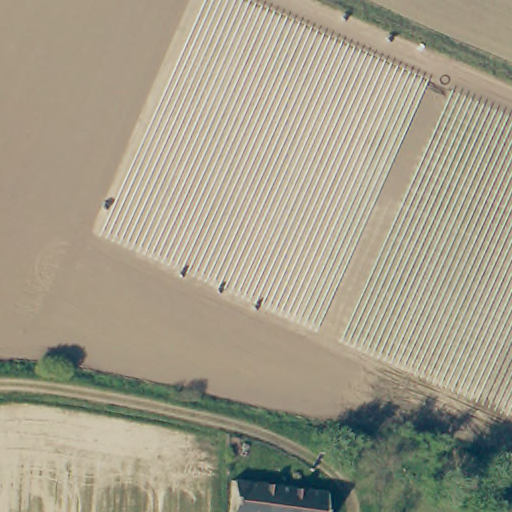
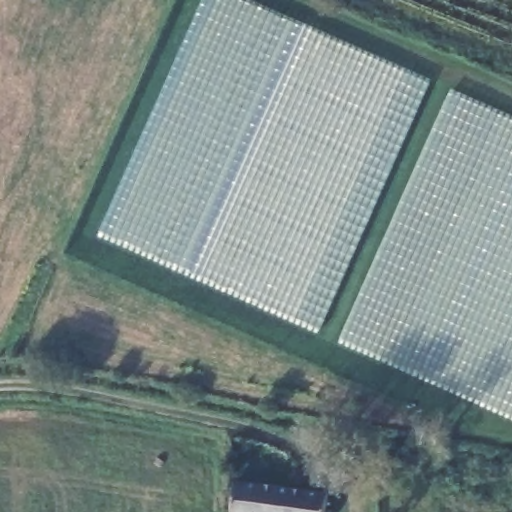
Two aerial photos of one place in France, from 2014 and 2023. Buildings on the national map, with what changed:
new [(203,0),(251,0),(430,82),(317,332),(97,236),(203,0)]
new [(338,342),(450,90),(512,118),(512,419),(338,342)]
unchanged [(234,474),(326,487),(323,512),(231,512),(234,474)]

